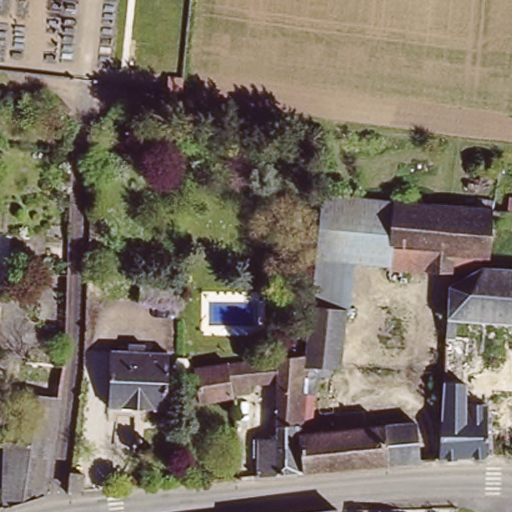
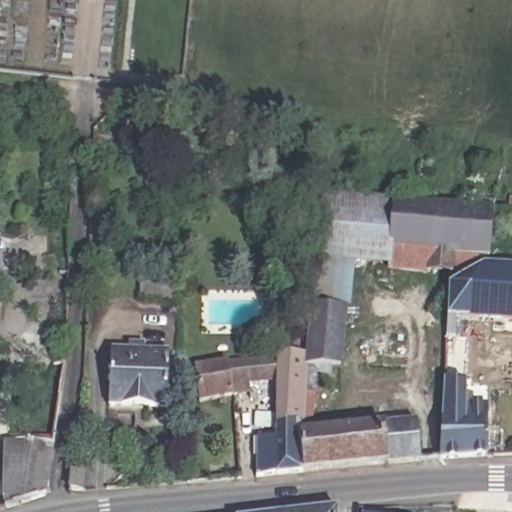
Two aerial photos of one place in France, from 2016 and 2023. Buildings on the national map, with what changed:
unchanged [(180,92),(165,90),(166,79),(181,80),(180,92)]
unchanged [(350,262),(313,259),(318,194),(392,201),(387,265),(350,262)]
unchanged [(489,210),(485,256),(448,255),(448,274),(387,269),(387,265),(392,201),(489,210)]
unchanged [(8,290),(2,290),(0,289),(0,235),(14,236),(8,290)]
unchanged [(350,262),(347,307),(310,305),(313,259),(350,262)]
unchanged [(485,265),(485,268),(512,269),(512,325),(454,321),(452,350),(444,349),(447,290),(485,265)]
unchanged [(0,300),(0,289),(2,290),(0,300)]
unchanged [(342,366),(334,365),(333,373),(305,371),(306,351),(310,305),(347,307),(342,366)]
unchanged [(0,499),(2,443),(7,443),(9,427),(18,428),(28,364),(20,363),(20,361),(22,355),(28,356),(27,361),(28,361),(35,362),(37,343),(63,346),(62,366),(43,492),(43,496),(0,510),(0,499)]
unchanged [(108,385),(107,353),(163,351),(165,386),(108,385)]
unchanged [(306,351),(305,371),(302,435),(301,473),(255,477),(255,440),(275,440),(276,378),(247,381),(248,390),(230,391),(227,358),(306,351)]
unchanged [(1,378),(0,378),(0,358),(3,358),(1,378)]
unchanged [(230,391),(230,395),(196,402),(194,381),(192,367),(206,364),(227,358),(230,391)]
unchanged [(166,407),(110,411),(108,385),(165,386),(166,407)]
unchanged [(438,461),(442,385),(455,385),(455,406),(487,405),(485,457),(438,461)]
unchanged [(301,473),(302,435),(415,426),(418,464),(301,473)]
unchanged [(78,473),(81,490),(67,491),(70,472),(78,473)]

